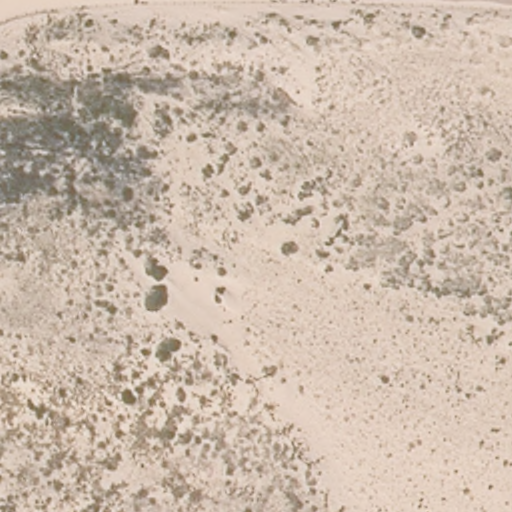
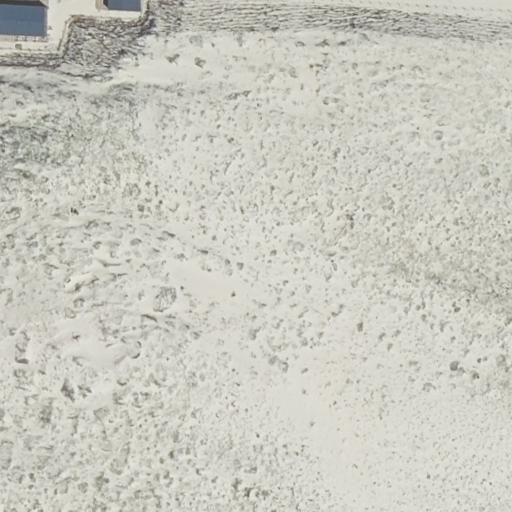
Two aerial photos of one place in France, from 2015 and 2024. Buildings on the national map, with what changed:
new [(48,6),(46,37),(0,34),(0,3),(48,6)]

